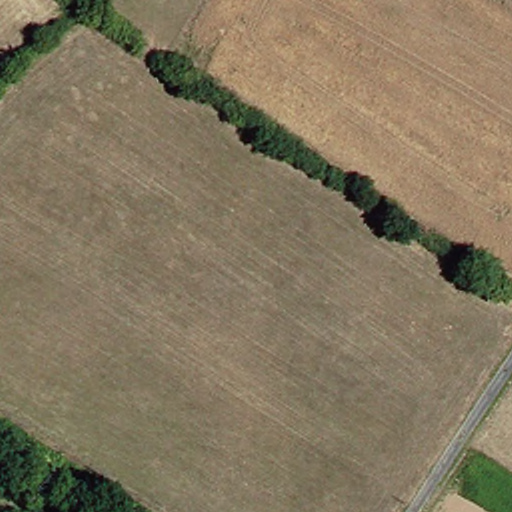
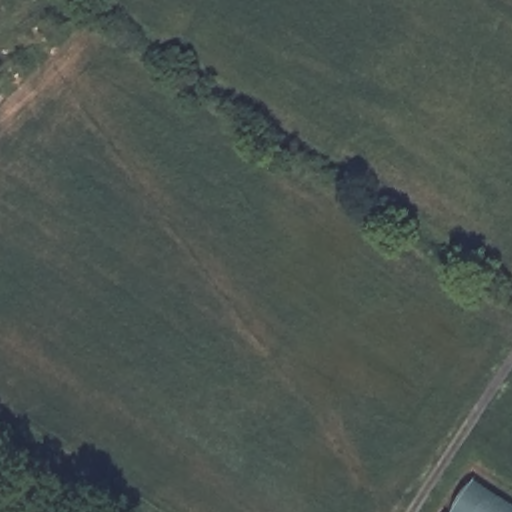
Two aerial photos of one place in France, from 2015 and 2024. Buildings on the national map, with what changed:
new [(512,501),(512,512),(455,512),(477,479),(512,501)]

